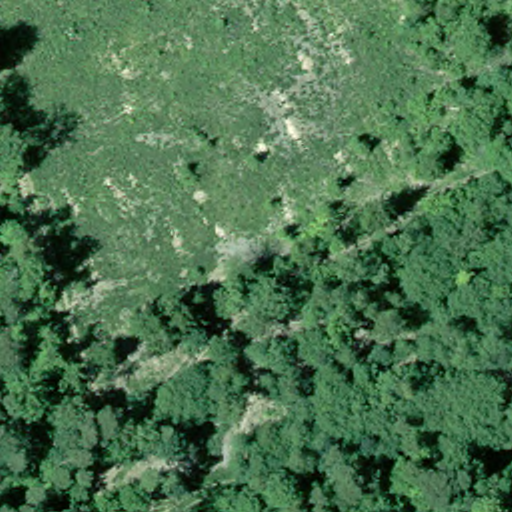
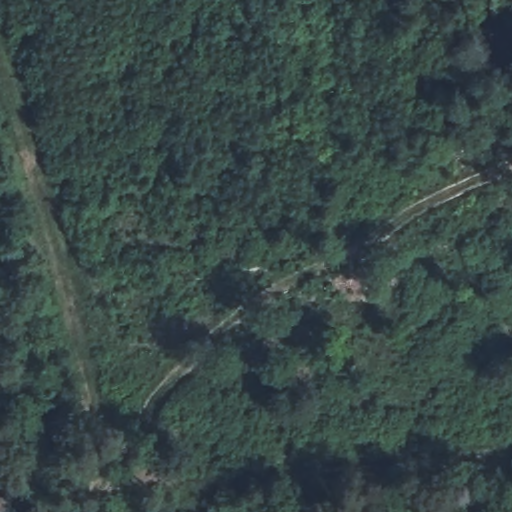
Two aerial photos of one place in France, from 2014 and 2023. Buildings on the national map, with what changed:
[]

